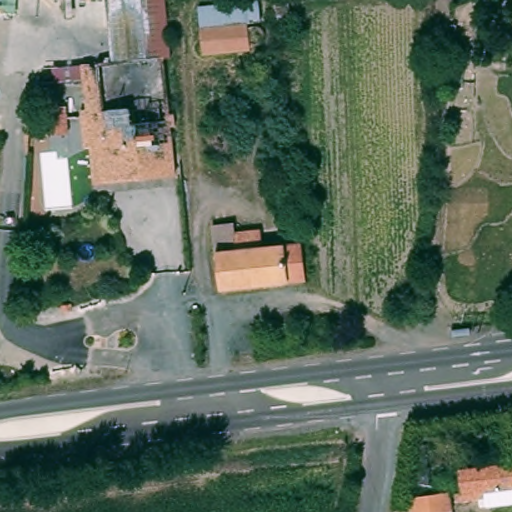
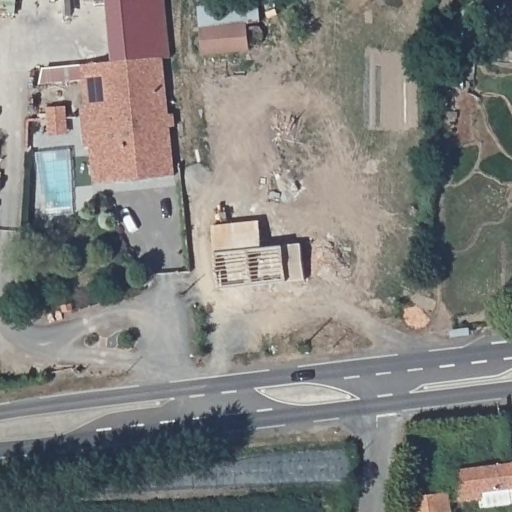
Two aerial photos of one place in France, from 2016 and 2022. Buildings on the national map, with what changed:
unchanged [(259,14),(260,38),(207,41),(206,17),(259,14)]
unchanged [(91,116),(89,61),(167,55),(177,177),(99,183),(96,149),(82,149),(80,116),(91,116)]
unchanged [(307,284),(283,285),(219,289),(217,250),(233,250),(232,230),(265,229),(267,247),(281,245),(307,245),(307,284)]
unchanged [(496,493),(489,494),(473,496),(460,499),(458,490),(466,489),(464,472),(492,468),(512,465),(512,484),(495,487),(496,493)]
unchanged [(412,494),(436,491),(452,489),(455,511),(448,512),(415,512),(412,494)]

